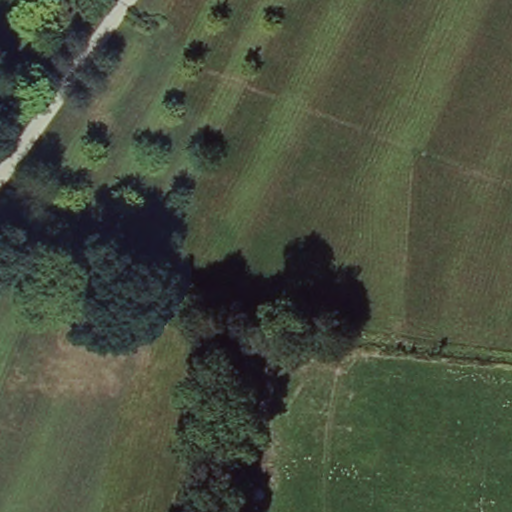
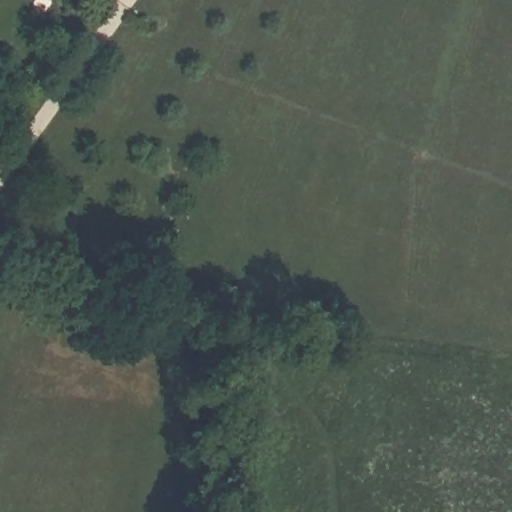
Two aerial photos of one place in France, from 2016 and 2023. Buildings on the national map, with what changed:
[]

